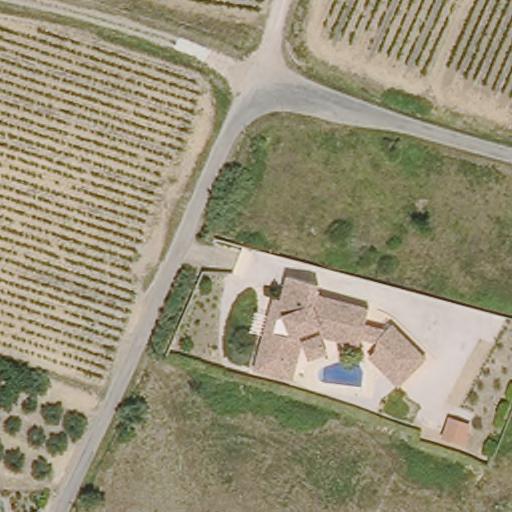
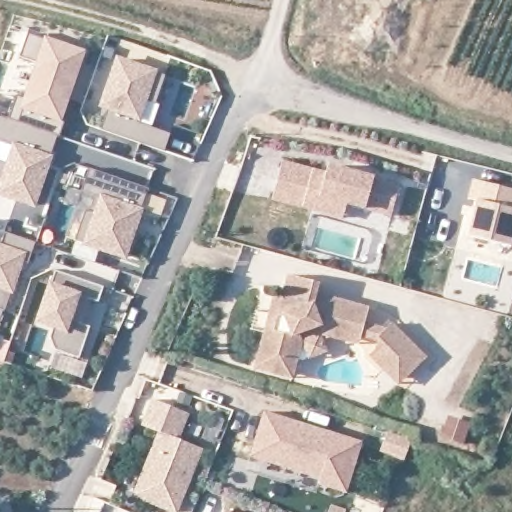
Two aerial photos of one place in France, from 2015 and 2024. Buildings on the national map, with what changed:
new [(20,94),(29,97),(41,62),(23,56),(31,32),(86,51),(70,98),(63,95),(56,115),(68,119),(62,135),(60,135),(11,117),(20,94)]
new [(110,107),(104,104),(120,58),(167,74),(157,102),(147,99),(139,121),(172,132),(166,151),(102,128),(110,107)]
new [(11,163),(18,145),(0,139),(0,114),(11,117),(60,135),(37,203),(0,190),(0,160),(11,163)]
new [(327,170),(328,162),(375,174),(400,182),(392,217),(365,210),(347,206),(343,219),(272,200),(284,161),(327,170)]
new [(87,207),(98,211),(103,195),(83,189),(90,166),(151,187),(127,255),(76,237),(87,207)]
new [(477,203),(470,203),(473,179),(512,188),(512,247),(468,236),(477,203)]
new [(31,263),(24,260),(15,294),(10,294),(5,310),(0,309),(0,244),(1,244),(5,232),(36,242),(31,263)]
new [(99,302),(92,299),(84,325),(90,327),(80,358),(55,350),(50,339),(54,329),(35,323),(49,281),(52,281),(55,270),(105,286),(99,302)]
unchanged [(271,315),(275,297),(282,298),(287,274),(318,281),(316,290),(370,301),(366,317),(382,320),(390,312),(395,316),(428,349),(407,371),(378,343),(380,334),(323,322),(295,336),(288,365),(262,360),(267,335),(253,332),(257,312),(271,315)]
unchanged [(297,379),(260,371),(262,360),(288,365),(295,336),(323,322),(380,334),(378,343),(407,371),(402,377),(362,339),(325,332),(333,348),(315,357),(307,340),(305,341),(297,379)]
new [(205,448),(179,512),(169,512),(132,497),(158,433),(141,427),(151,398),(190,412),(180,439),(205,448)]
new [(348,493),(321,486),(323,478),(249,457),(263,411),(362,440),(348,493)]
new [(224,512),(225,509),(233,512),(224,512)]

